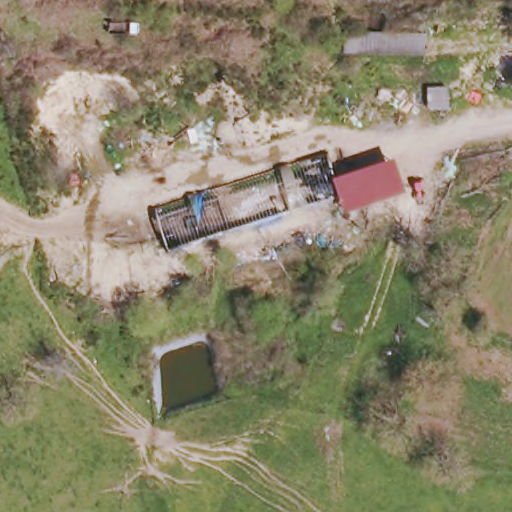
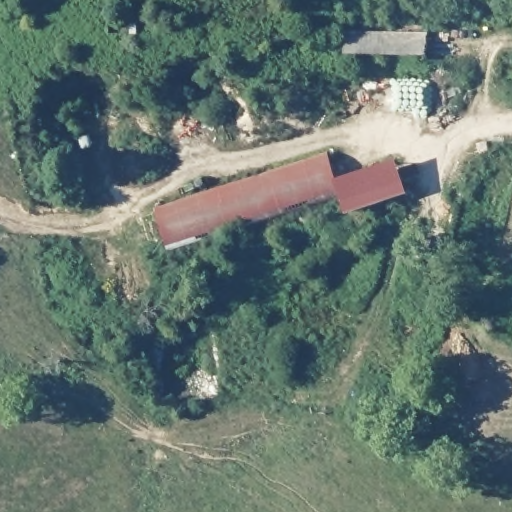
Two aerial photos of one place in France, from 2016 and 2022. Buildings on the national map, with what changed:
unchanged [(351,54),(351,34),(426,35),(426,56),(351,54)]
new [(156,210),(327,154),(333,174),(335,179),(337,187),(340,194),(166,247),(156,210)]
unchanged [(393,156),(405,190),(345,209),(340,194),(337,187),(335,179),(333,174),(393,156)]

